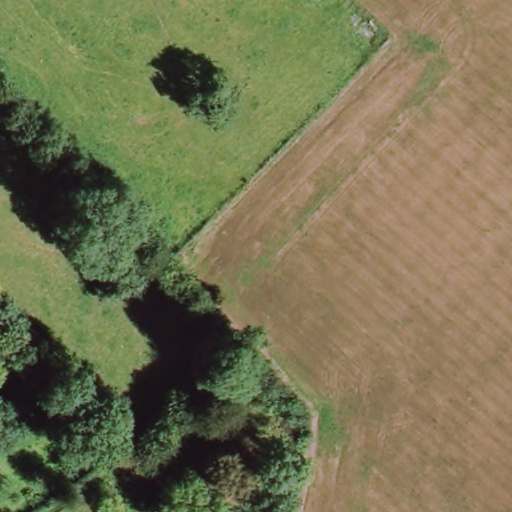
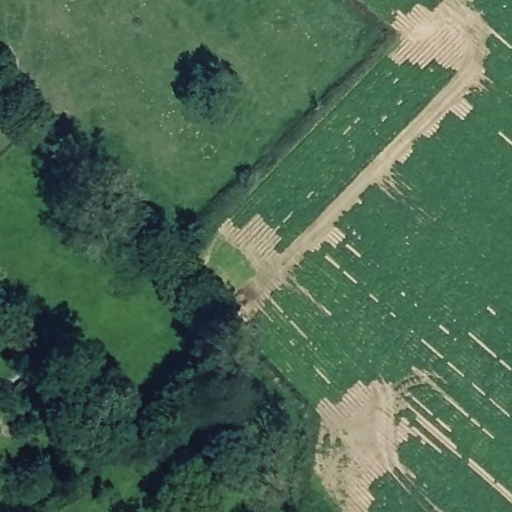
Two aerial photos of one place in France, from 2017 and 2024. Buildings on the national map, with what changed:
[]

